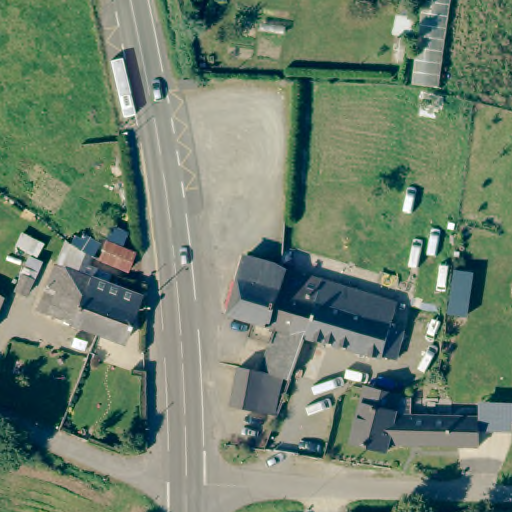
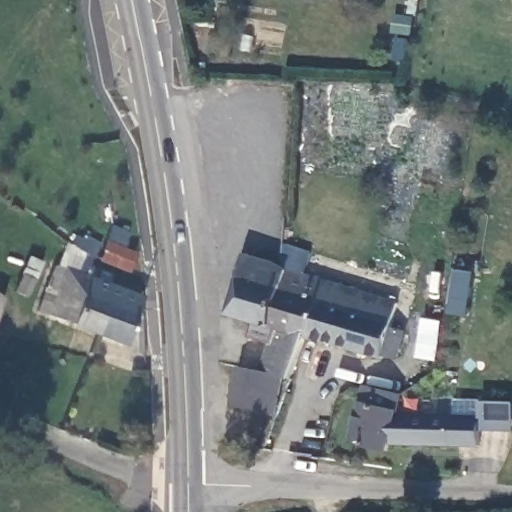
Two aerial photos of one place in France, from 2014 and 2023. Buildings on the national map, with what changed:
unchanged [(95,242),(88,257),(64,242),(71,229),(95,242)]
unchanged [(285,263),(280,283),(291,286),(296,266),(320,275),(304,327),(303,332),(276,408),(229,398),(237,363),(276,371),(278,368),(261,362),(268,338),(245,332),(250,315),(229,310),(243,251),(279,261),(285,263)]
unchanged [(89,280),(85,278),(79,296),(101,305),(92,333),(35,310),(55,254),(93,268),(89,280)]
unchanged [(104,285),(135,295),(119,343),(92,333),(101,305),(79,296),(85,278),(89,280),(93,268),(95,262),(109,271),(104,285)]
unchanged [(394,299),(389,321),(402,325),(394,352),(381,350),(380,352),(303,332),(304,327),(320,275),(370,291),(394,299)]
unchanged [(0,301),(0,292),(5,295),(0,301)]
unchanged [(388,440),(387,440),(385,447),(351,440),(363,383),(398,391),(393,411),(393,412),(388,440)]
unchanged [(477,412),(477,441),(388,440),(393,412),(393,411),(477,412)]

